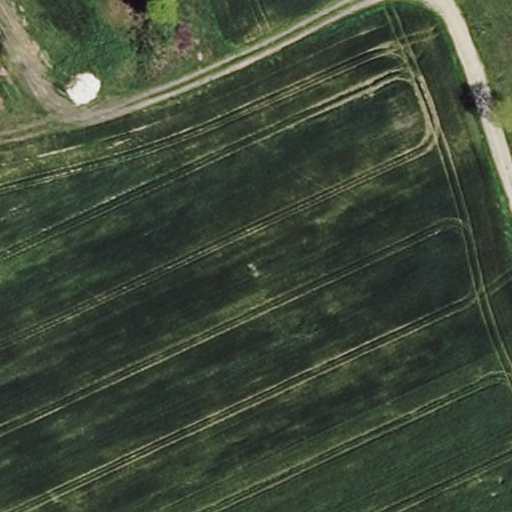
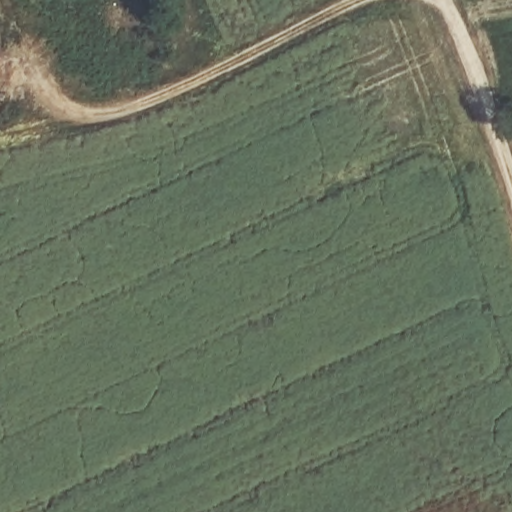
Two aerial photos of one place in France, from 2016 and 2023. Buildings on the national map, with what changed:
[]

